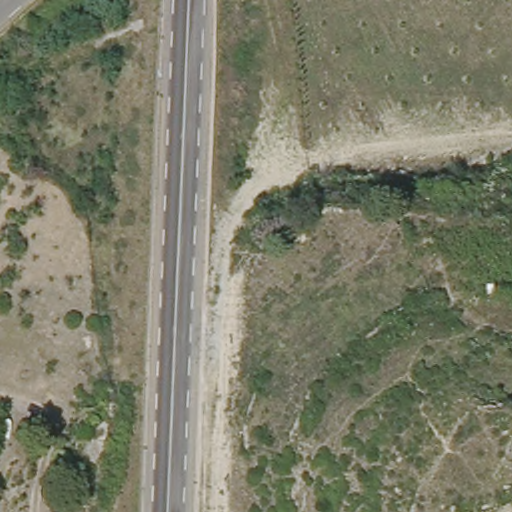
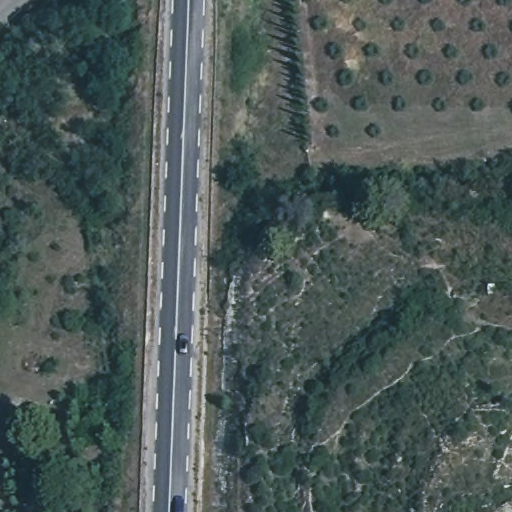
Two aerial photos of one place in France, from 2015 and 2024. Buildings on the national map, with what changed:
unchanged [(109,435),(104,462),(83,457),(88,431),(109,435)]

